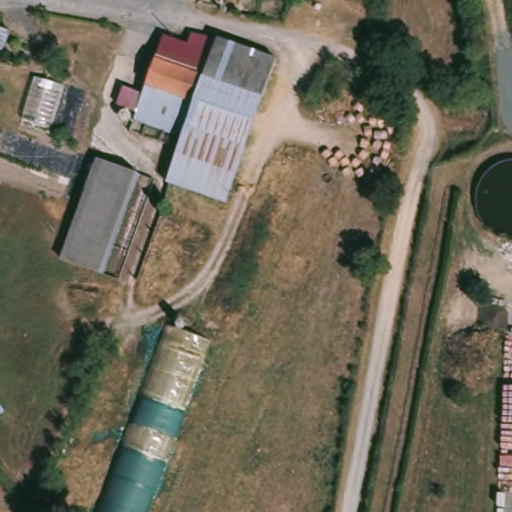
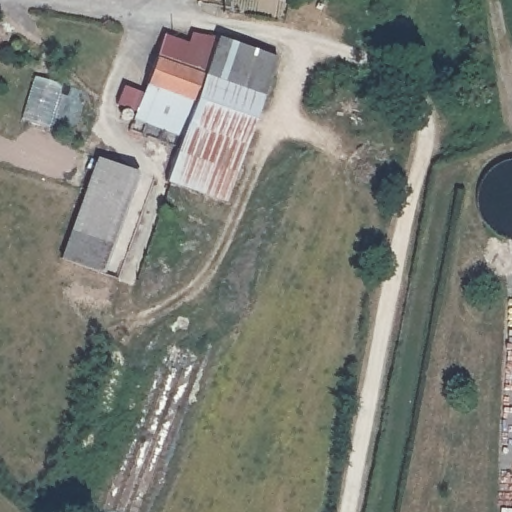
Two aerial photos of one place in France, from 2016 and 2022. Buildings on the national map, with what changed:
unchanged [(184,136),(136,118),(140,110),(121,102),(127,84),(148,90),(169,37),(188,45),(195,32),(224,37),(184,136)]
unchanged [(166,181),(184,136),(224,37),(233,39),(283,46),(222,204),(177,185),(166,181)]
unchanged [(102,270),(65,254),(101,162),(140,175),(102,270)]
demolished [(182,325),(184,316),(190,319),(189,330),(214,338),(150,512),(99,512),(169,322),(182,325)]

